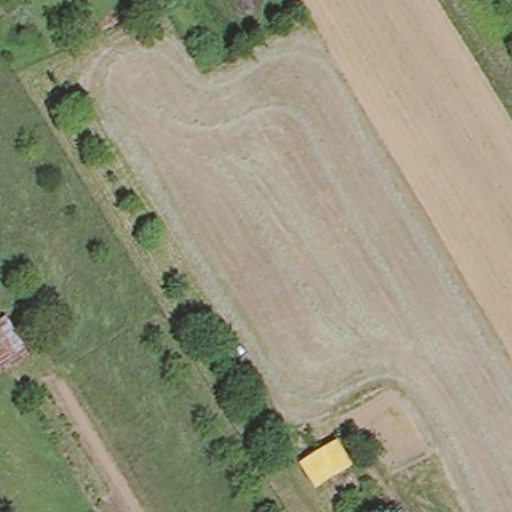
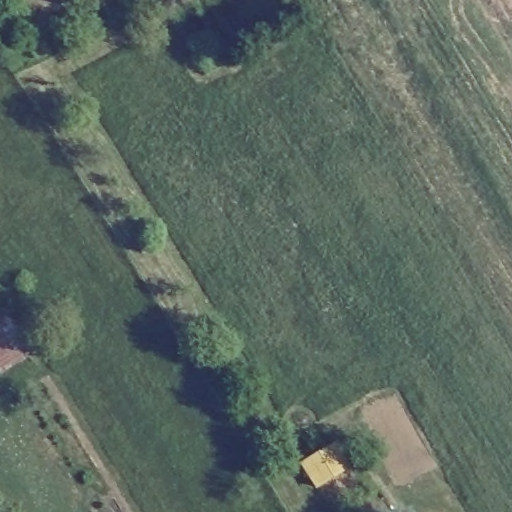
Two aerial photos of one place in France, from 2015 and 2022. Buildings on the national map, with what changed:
unchanged [(30,345),(0,368),(0,309),(6,306),(30,345)]
unchanged [(297,465),(340,441),(352,468),(317,492),(297,465)]

